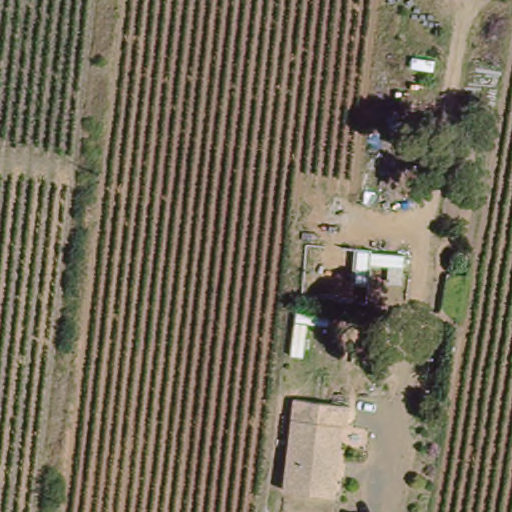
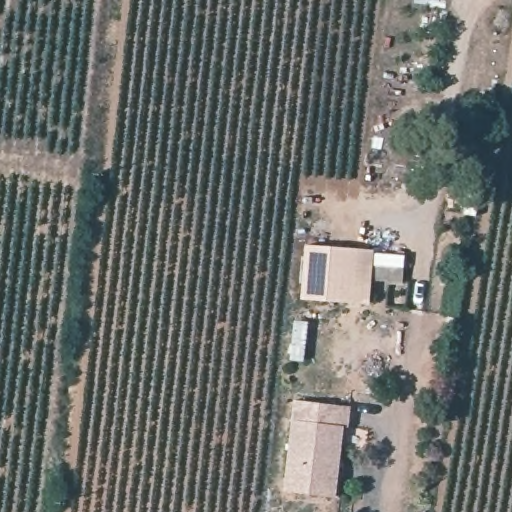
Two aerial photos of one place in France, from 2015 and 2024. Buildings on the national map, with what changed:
new [(375,250),(375,253),(405,255),(403,282),(372,280),(370,305),(301,299),(305,245),(375,250)]
unchanged [(292,394),(348,400),(347,418),(344,418),(334,485),(281,478),(292,394)]

